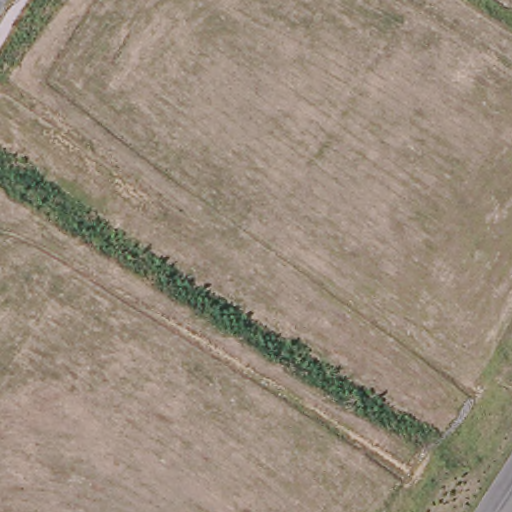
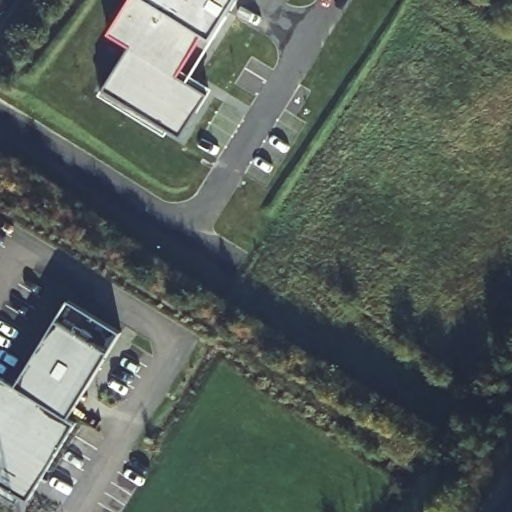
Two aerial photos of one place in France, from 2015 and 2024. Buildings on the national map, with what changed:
new [(203,44),(196,39),(173,78),(202,94),(178,139),(101,94),(127,54),(104,38),(128,0),(234,0),(203,44)]
new [(15,385),(69,299),(121,332),(69,418),(76,422),(28,501),(21,497),(16,505),(0,495),(0,376),(15,385)]

